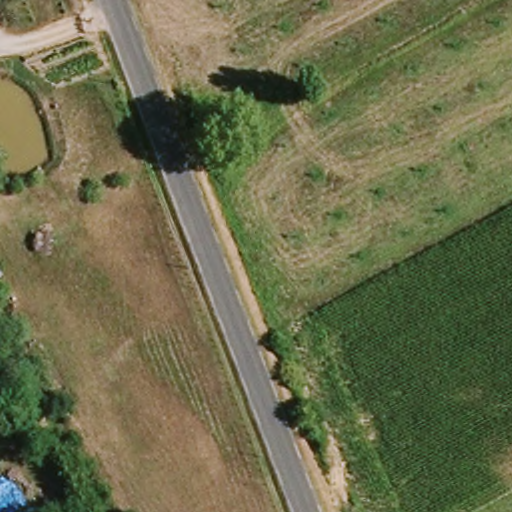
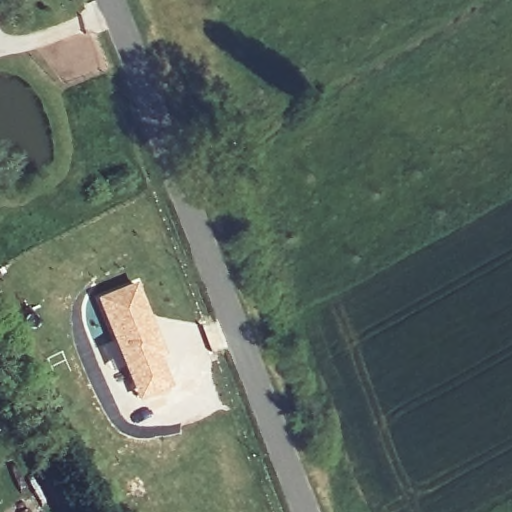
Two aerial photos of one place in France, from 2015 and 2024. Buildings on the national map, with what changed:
new [(165,359),(162,360),(173,385),(139,400),(97,298),(136,282),(165,359)]

